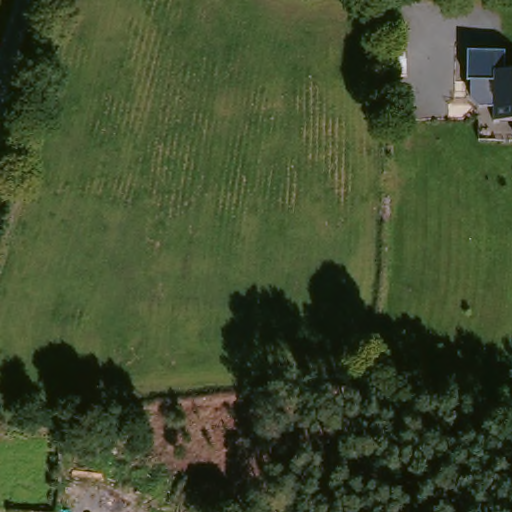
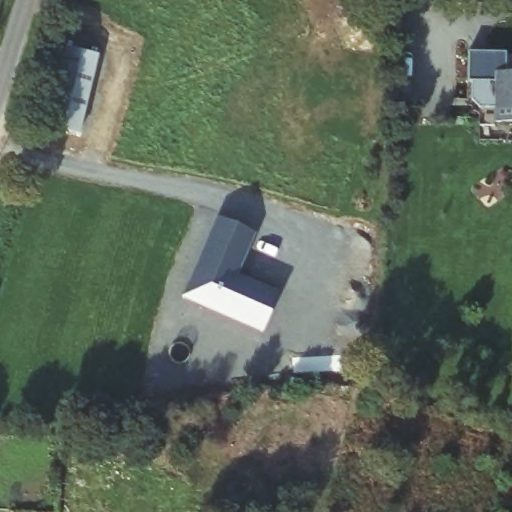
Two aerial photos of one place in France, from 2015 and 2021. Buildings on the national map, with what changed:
unchanged [(468,54),(505,55),(506,71),(512,70),(512,121),(497,121),(496,106),(481,106),(473,99),(473,81),(468,81),(468,54)]
new [(207,216),(244,231),(226,274),(269,291),(253,328),(174,295),(207,216)]

